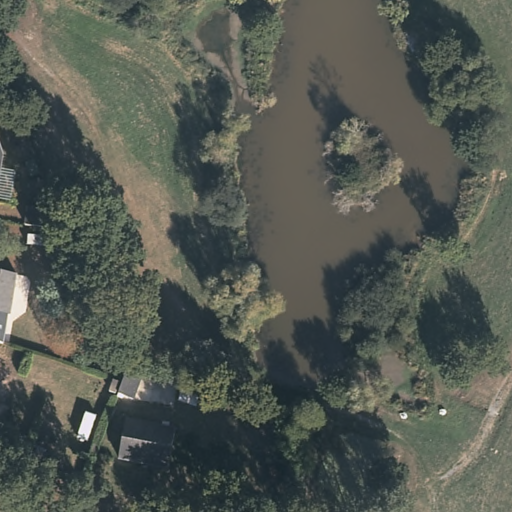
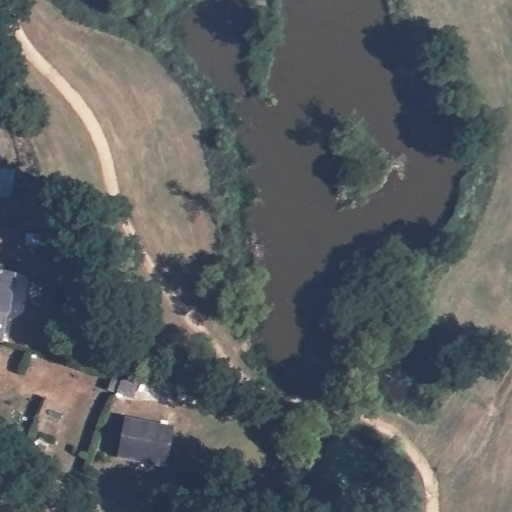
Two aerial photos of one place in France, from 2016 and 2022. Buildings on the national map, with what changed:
unchanged [(0,155),(0,148),(1,155),(0,155)]
unchanged [(0,165),(0,155),(1,155),(0,165)]
unchanged [(55,213),(53,229),(23,225),(25,209),(55,213)]
unchanged [(3,343),(0,342),(0,271),(17,274),(11,314),(8,314),(3,343)]
unchanged [(126,367),(141,372),(134,393),(132,398),(116,392),(124,372),(126,367)]
unchanged [(174,429),(166,469),(156,467),(116,459),(124,419),(143,423),(174,429)]

